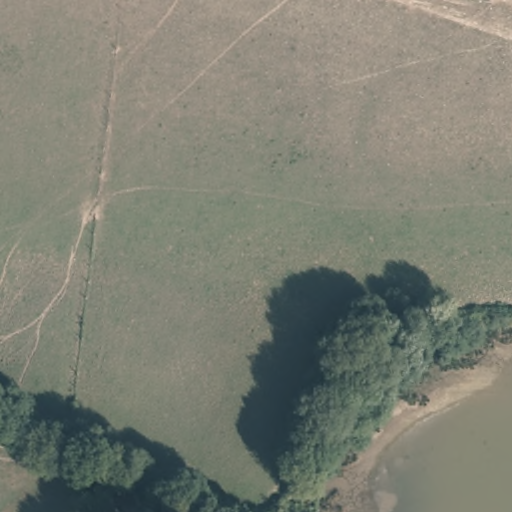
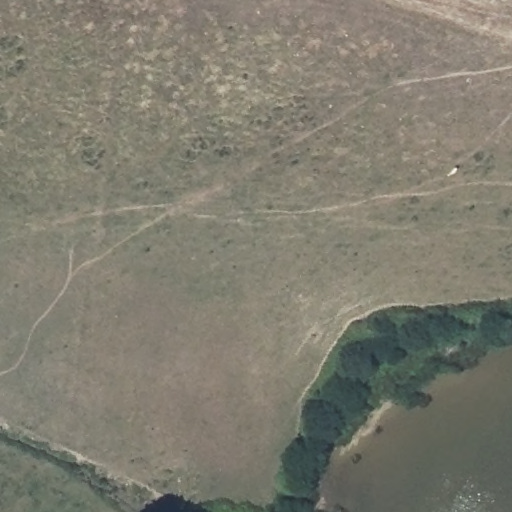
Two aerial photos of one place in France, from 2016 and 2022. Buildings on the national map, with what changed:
[]

